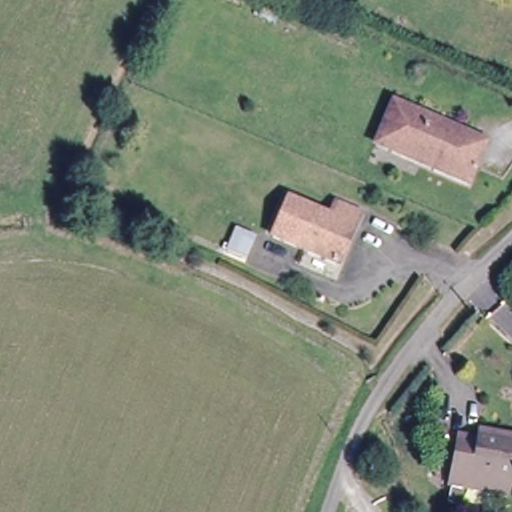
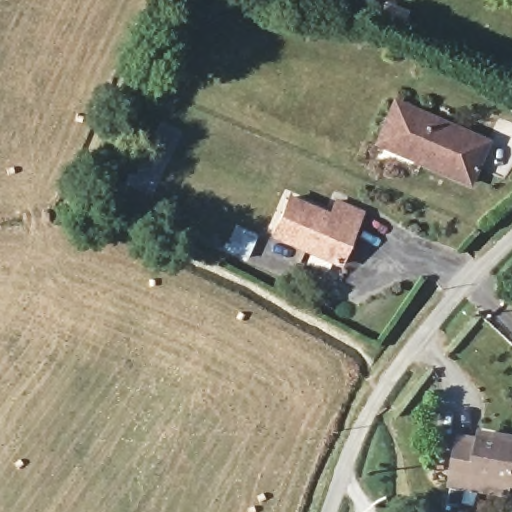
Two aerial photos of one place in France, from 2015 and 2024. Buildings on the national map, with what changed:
unchanged [(466,174),(393,141),(381,137),(396,96),(408,101),(485,134),(466,174)]
unchanged [(194,221),(171,212),(179,193),(202,202),(194,221)]
unchanged [(346,223),(352,226),(338,261),(274,233),(288,200),(329,217),(333,207),(349,214),(346,223)]
unchanged [(469,486),(447,481),(457,433),(475,437),(476,431),(512,439),(512,483),(505,482),(503,495),(469,486)]

